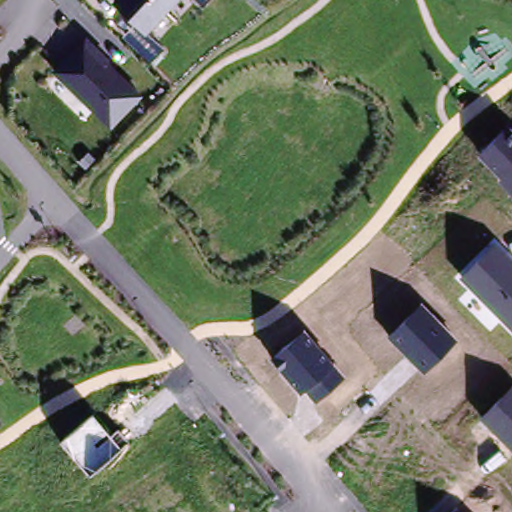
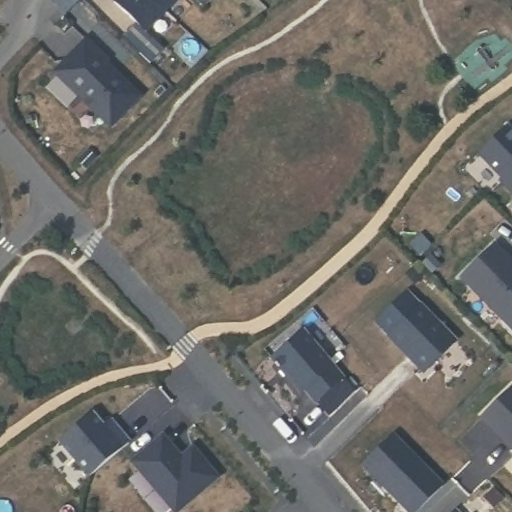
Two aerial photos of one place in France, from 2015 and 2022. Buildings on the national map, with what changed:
unchanged [(163,49),(151,62),(123,35),(134,21),(112,1),(112,0),(180,0),(148,34),(163,49)]
unchanged [(196,0),(209,0),(203,6),(196,0)]
unchanged [(144,98),(111,132),(51,71),(83,38),(144,98)]
unchanged [(499,181),(503,178),(479,154),(510,127),(512,129),(512,193),(499,181)]
unchanged [(512,261),(512,330),(460,277),(495,244),(512,261)]
unchanged [(388,337),(422,303),(458,340),(424,373),(388,337)]
unchanged [(304,329),(346,377),(316,403),(305,391),(301,394),(272,358),(304,329)]
unchanged [(480,418),(512,386),(512,451),(480,418)]
unchanged [(110,435),(118,429),(128,443),(90,477),(61,443),(93,414),(110,435)]
new [(175,508),(131,458),(161,432),(173,446),(165,452),(173,460),(190,445),(215,474),(175,508)]
new [(392,434),(443,484),(415,512),(412,512),(364,463),(392,434)]
unchanged [(457,508),(461,512),(453,512),(457,508)]

